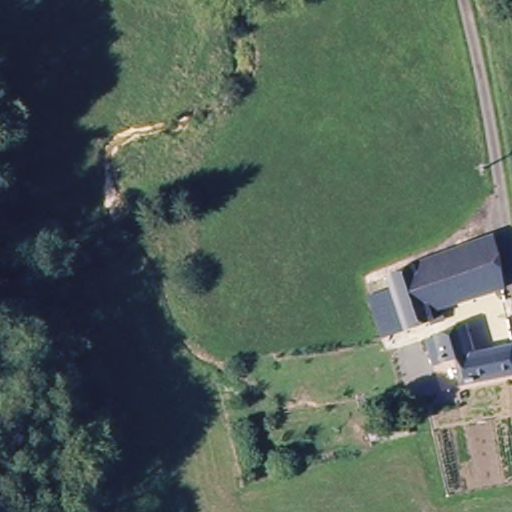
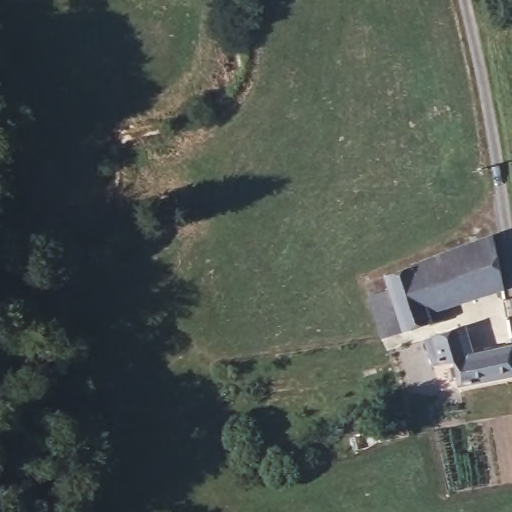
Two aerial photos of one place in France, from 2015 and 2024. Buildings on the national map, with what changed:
unchanged [(387,275),(494,235),(503,287),(431,315),(435,325),(409,334),(390,340),(375,299),(394,292),(387,275)]
unchanged [(471,355),(512,346),(512,375),(458,387),(452,363),(445,365),(438,333),(464,327),(471,355)]

